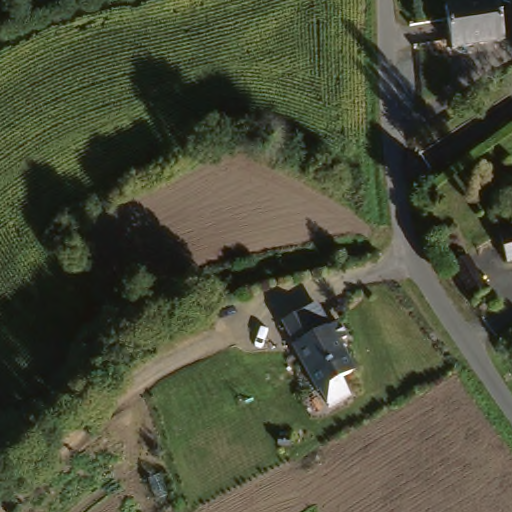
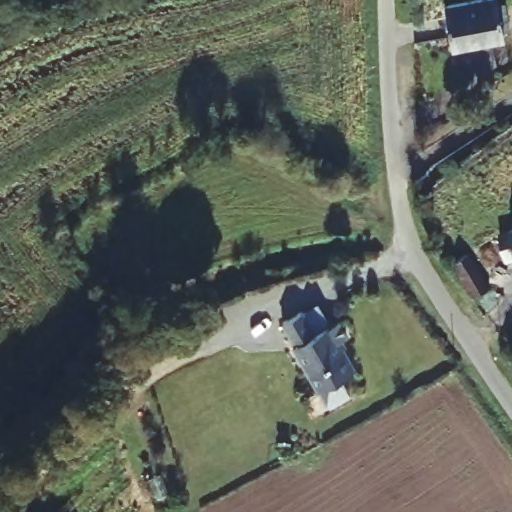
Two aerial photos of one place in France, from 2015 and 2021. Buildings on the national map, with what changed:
unchanged [(497,45),(449,52),(443,10),(491,3),(497,45)]
unchanged [(501,263),(488,236),(502,230),(512,229),(512,260),(511,258),(501,263)]
unchanged [(487,292),(469,306),(441,266),(456,253),(487,292)]
unchanged [(333,399),(322,383),(320,384),(292,341),(293,340),(279,319),(298,306),(312,328),(326,318),(328,319),(335,314),(344,329),(337,334),(355,361),(341,370),(352,386),(333,399)]

